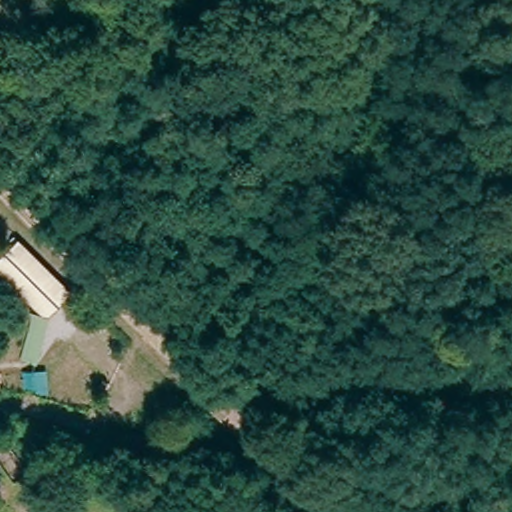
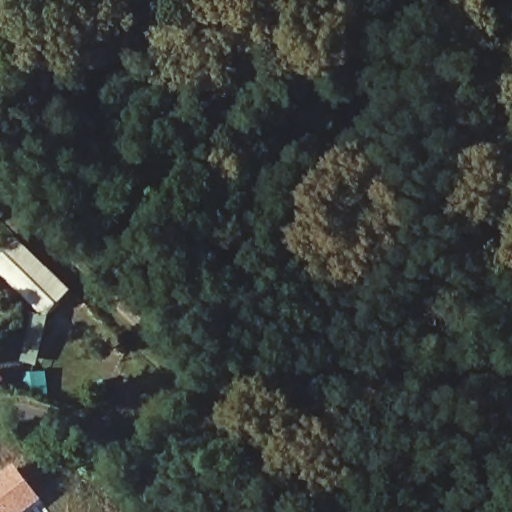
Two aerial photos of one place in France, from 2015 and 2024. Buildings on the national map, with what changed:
unchanged [(71,290),(47,315),(29,299),(0,271),(0,255),(16,237),(71,290)]
unchanged [(38,350),(35,363),(21,359),(32,315),(33,312),(47,315),(38,350)]
unchanged [(0,389),(0,385),(2,387),(0,389)]
new [(43,500),(28,512),(0,512),(0,474),(15,462),(43,500)]

